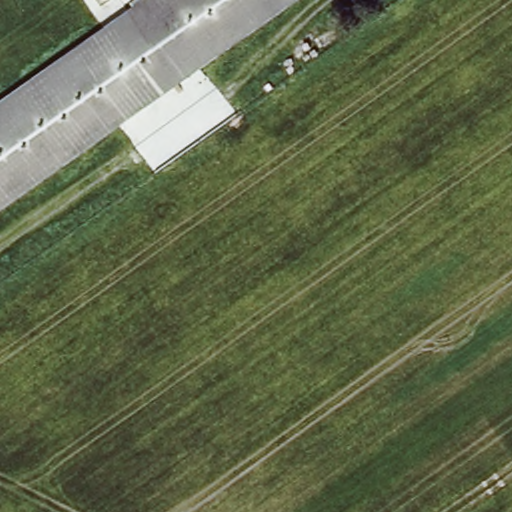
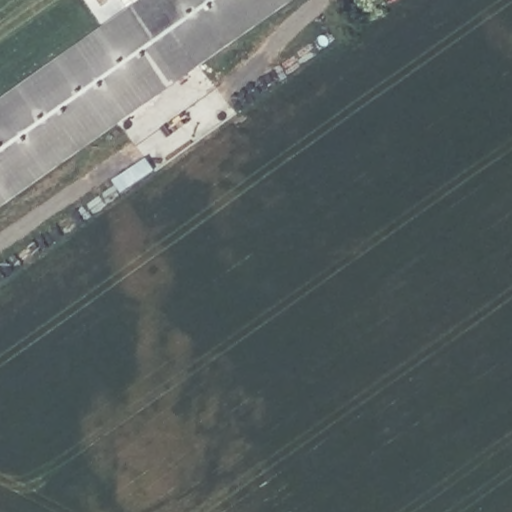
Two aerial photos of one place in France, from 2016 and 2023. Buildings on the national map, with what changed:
unchanged [(145,0),(295,0),(0,206),(0,103),(138,5),(145,0)]

